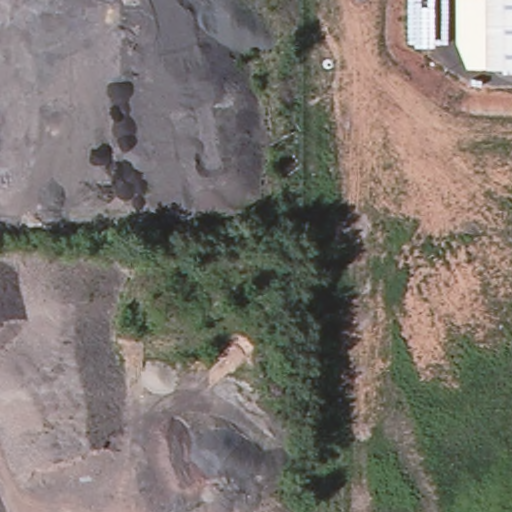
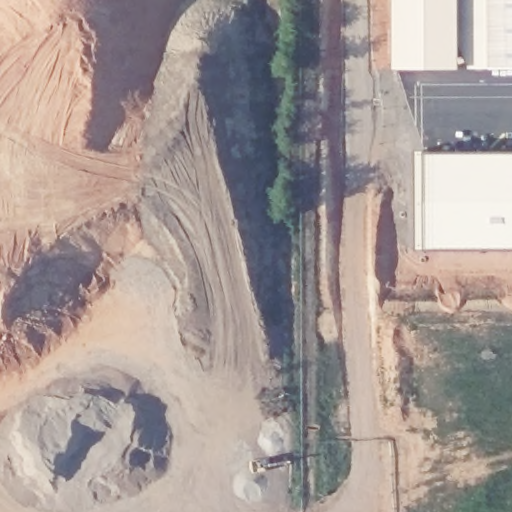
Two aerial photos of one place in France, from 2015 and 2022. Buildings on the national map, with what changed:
new [(457,72),(390,72),(390,0),(457,0),(457,72)]
unchanged [(484,70),(483,0),(512,0),(512,70),(484,70)]
new [(512,152),(512,250),(419,249),(415,152),(512,152)]

